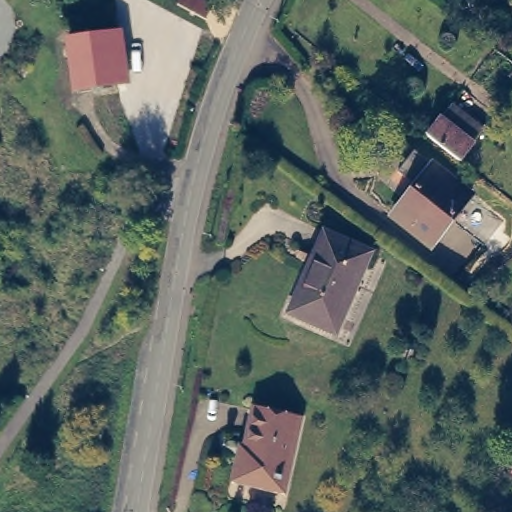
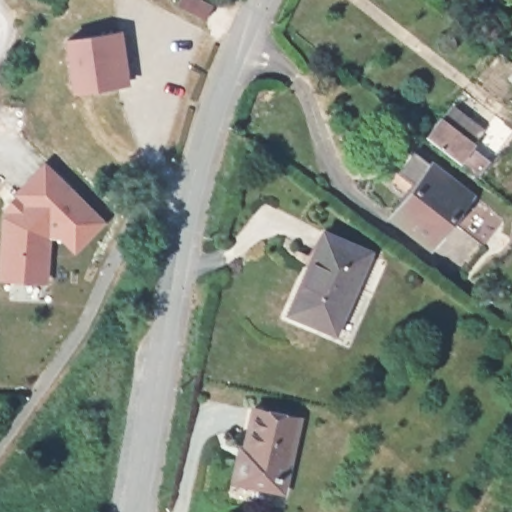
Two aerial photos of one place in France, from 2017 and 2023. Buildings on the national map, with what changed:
unchanged [(213,6),(206,19),(177,5),(179,0),(201,0),(210,5),(213,6)]
unchanged [(80,85),(73,36),(124,27),(131,78),(80,85)]
unchanged [(439,121),(452,107),(483,131),(472,146),(459,162),(426,137),(439,121)]
unchanged [(392,217),(415,187),(397,173),(414,152),(471,196),(430,247),(392,217)]
new [(26,280),(0,278),(5,218),(10,213),(6,208),(20,194),(18,193),(45,166),(102,223),(75,250),(60,236),(48,235),(47,259),(45,281),(26,280)]
unchanged [(483,178),(490,169),(506,182),(500,190),(483,178)]
unchanged [(296,308),(330,230),(374,248),(340,327),(296,308)]
unchanged [(276,491),(233,482),(238,456),(242,457),(253,409),(300,419),(289,471),(283,493),(276,491)]

